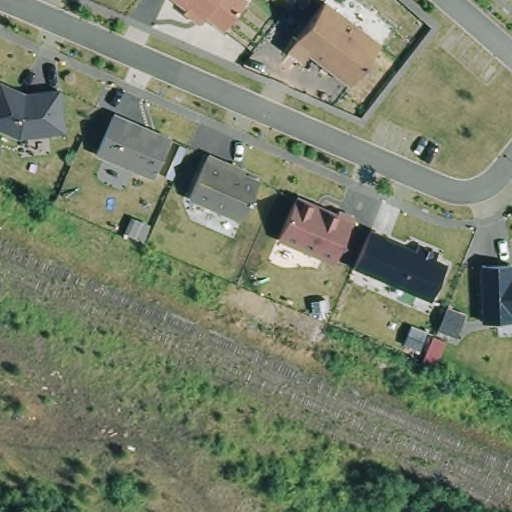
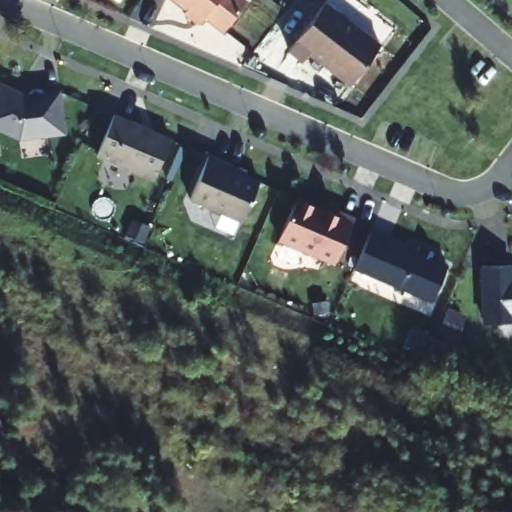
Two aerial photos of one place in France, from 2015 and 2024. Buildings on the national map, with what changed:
unchanged [(248,1),(225,30),(207,15),(202,20),(177,0),(247,0),(248,1)]
unchanged [(349,86),(309,54),(302,62),(288,51),(325,3),(380,46),(349,86)]
unchanged [(15,95),(25,99),(26,96),(60,91),(65,133),(20,139),(0,130),(0,84),(17,92),(15,95)]
unchanged [(114,116),(142,127),(144,132),(151,136),(157,134),(172,140),(155,180),(97,155),(114,116)]
unchanged [(242,221),(190,198),(208,154),(235,166),(233,169),(259,181),(242,221)]
unchanged [(279,239),(296,197),(337,215),(339,211),(355,218),(335,263),(279,239)]
unchanged [(362,252),(370,231),(386,238),(385,239),(405,247),(405,249),(412,252),(412,251),(417,252),(420,245),(447,258),(444,264),(447,266),(432,301),(355,268),(362,252)]
unchanged [(512,315),(512,325),(485,324),(485,261),(507,259),(509,272),(512,272),(512,315)]

